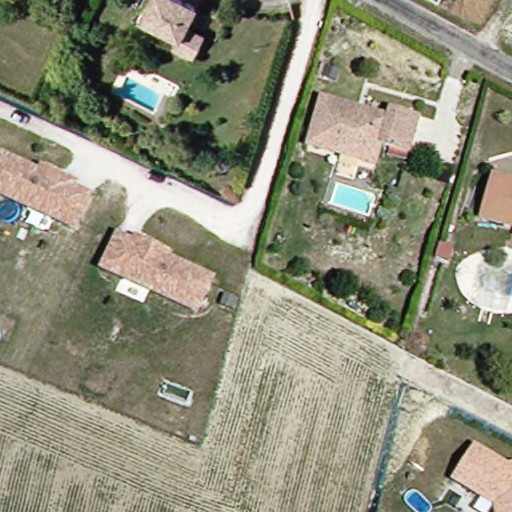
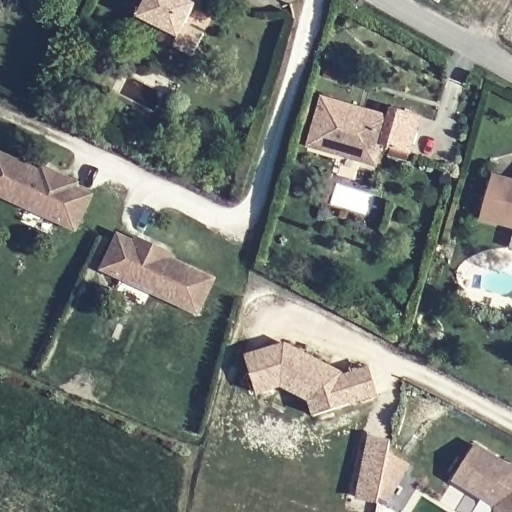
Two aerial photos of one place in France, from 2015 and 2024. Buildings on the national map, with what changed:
unchanged [(189,58),(168,48),(173,37),(132,17),(142,0),(183,0),(192,5),(182,25),(200,35),(189,58)]
unchanged [(327,160),(302,153),(316,104),(385,122),(388,109),(416,116),(406,153),(377,146),(374,159),(370,172),(327,160)]
unchanged [(95,193),(79,228),(0,192),(0,150),(44,170),(46,165),(53,168),(80,181),(78,186),(95,193)]
unchanged [(469,222),(481,184),(512,193),(512,235),(469,222)]
unchanged [(136,236),(164,248),(170,252),(168,256),(213,276),(198,311),(101,267),(117,233),(134,240),(136,236)]
new [(376,395),(349,402),(350,403),(313,414),(309,399),(280,382),(256,389),(245,352),(285,341),(341,372),(342,376),(369,369),(376,395)]
new [(379,497),(377,504),(355,499),(368,437),(390,442),(388,450),(409,462),(386,501),(379,497)]
unchanged [(475,444),(508,465),(512,465),(512,512),(495,512),(494,505),(452,478),(475,444)]

